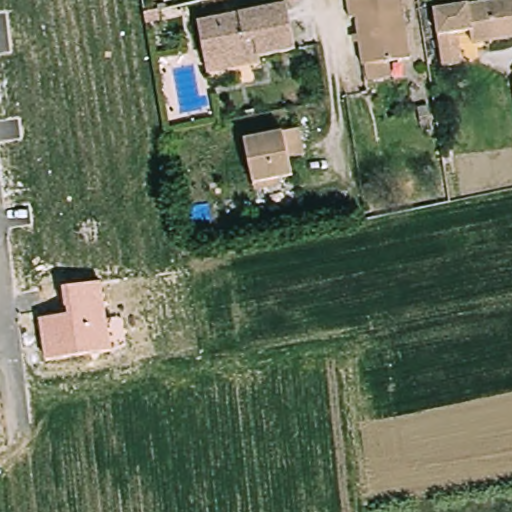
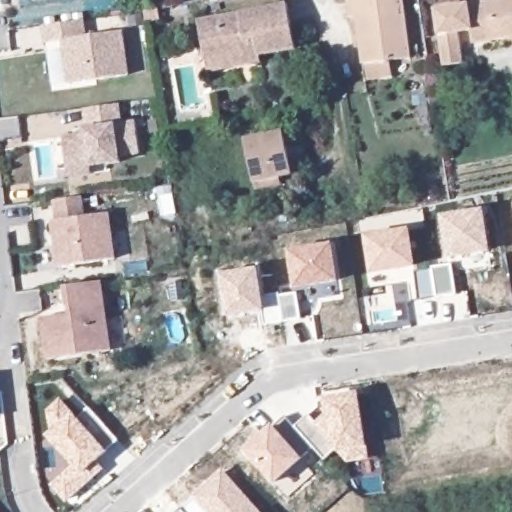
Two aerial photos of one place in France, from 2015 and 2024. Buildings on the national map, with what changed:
unchanged [(203,0),(200,1),(200,0),(203,0)]
unchanged [(366,64),(360,17),(354,17),(351,0),(407,0),(415,57),(366,64)]
unchanged [(512,0),(512,37),(477,43),(475,30),(460,32),(465,63),(449,66),(439,9),(495,0),(512,0)]
unchanged [(206,74),(204,60),(198,22),(285,6),(294,50),(258,57),(259,63),(206,74)]
unchanged [(157,9),(159,19),(145,22),(143,12),(157,9)]
unchanged [(82,22),(84,37),(121,32),(127,77),(69,85),(63,42),(45,45),(42,27),(82,22)]
new [(86,127),(83,109),(118,104),(121,123),(134,121),(139,153),(120,156),(121,162),(89,167),(90,174),(67,177),(64,136),(86,127)]
unchanged [(259,192),(257,184),(249,138),(304,127),(307,142),(310,158),(294,161),(297,176),(284,179),(285,187),(259,192)]
new [(57,222),(54,202),(82,198),(84,218),(109,215),(115,261),(59,268),(52,222),(57,222)]
new [(485,207),(492,251),(449,258),(440,216),(485,207)]
new [(417,267),(372,274),(365,235),(409,227),(417,267)]
new [(340,281),(294,288),(288,251),(332,242),(340,281)]
new [(432,267),(452,264),(457,295),(419,301),(414,272),(432,271),(432,267)]
new [(259,267),(264,297),(279,293),(280,296),(295,292),(300,319),(265,326),(264,312),(227,317),(220,273),(259,267)]
unchanged [(111,350),(46,360),(38,320),(68,314),(64,290),(100,283),(111,350)]
new [(275,485),(244,451),(272,425),(275,428),(287,417),(295,427),(309,415),(316,423),(327,415),(324,398),(360,391),(368,448),(369,460),(348,463),(338,451),(325,461),(313,447),(303,459),(275,485)]
new [(66,502),(51,485),(73,463),(47,435),(51,432),(47,412),(61,398),(73,413),(79,421),(91,409),(119,442),(107,451),(96,462),(105,470),(66,502)]
new [(223,470),(261,512),(178,512),(223,470)]

